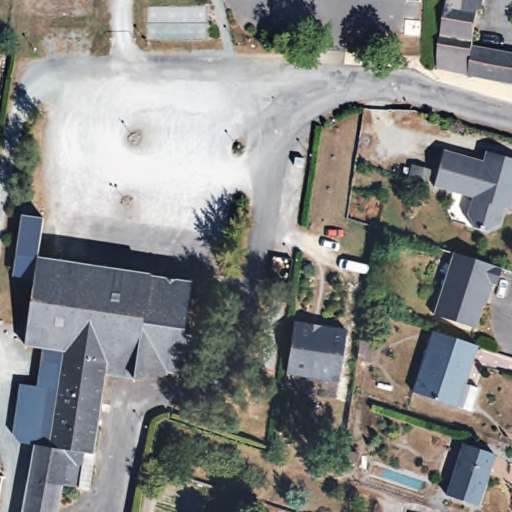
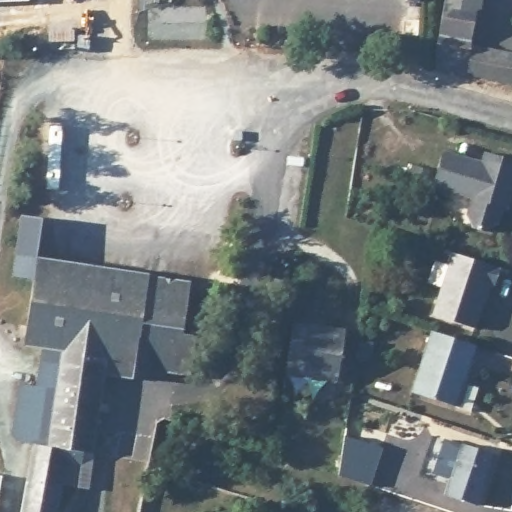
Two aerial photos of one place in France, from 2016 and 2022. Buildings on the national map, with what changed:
unchanged [(438,70),(438,64),(447,10),(448,6),(449,0),(479,0),(486,1),(483,17),(478,16),(473,49),(469,77),(438,70)]
unchanged [(512,87),(469,77),(473,49),(512,57),(512,87)]
unchanged [(484,159),(512,168),(512,191),(503,217),(501,216),(495,233),(482,240),(469,236),(463,223),(469,204),(430,191),(442,156),(481,169),(484,159)]
unchanged [(63,482),(57,512),(10,512),(10,507),(23,509),(36,444),(20,441),(14,433),(21,383),(38,386),(43,349),(22,346),(32,279),(13,276),(16,256),(21,216),(41,219),(35,259),(150,276),(150,279),(190,285),(181,348),(195,350),(189,388),(164,384),(163,387),(134,387),(133,388),(103,384),(93,451),(88,486),(78,485),(63,482)]
unchanged [(497,268),(492,284),(484,282),(478,300),(480,300),(471,327),(430,314),(450,253),(497,268)]
unchanged [(346,332),(338,383),(286,376),(294,324),(346,332)]
unchanged [(474,347),(461,385),(475,389),(467,412),(454,407),(410,393),(430,332),(474,347)]
new [(344,436),(381,449),(369,486),(338,475),(344,436)]
unchanged [(495,453),(479,505),(448,495),(464,444),(495,453)]
demolished [(361,453),(359,464),(348,462),(350,451),(361,453)]
unchanged [(3,474),(0,491),(0,473),(3,474)]

